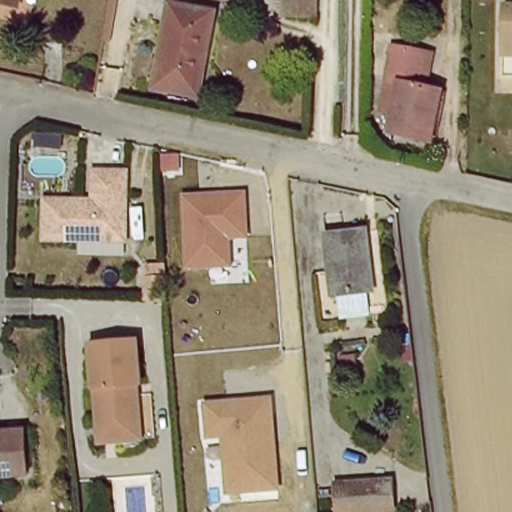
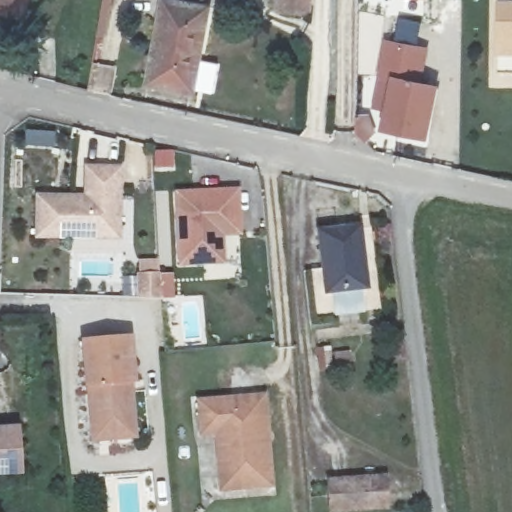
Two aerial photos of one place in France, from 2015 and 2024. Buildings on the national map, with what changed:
unchanged [(0,7),(0,0),(15,0),(12,11),(0,7)]
unchanged [(148,83),(169,0),(173,0),(214,10),(193,94),(148,83)]
unchanged [(280,0),(311,0),(310,13),(279,12),(280,0)]
unchanged [(503,0),(512,0),(512,51),(502,51),(503,0)]
unchanged [(391,80),(370,74),(382,36),(430,51),(422,80),(445,87),(431,146),(377,130),(391,80)]
unchanged [(110,239),(102,239),(40,238),(42,199),(90,200),(90,170),(105,171),(122,171),(120,229),(120,239),(110,239)]
unchanged [(224,238),(225,266),(182,268),(179,197),(240,194),(241,229),(241,237),(224,238)]
unchanged [(359,290),(321,294),(316,234),(355,231),(359,290)]
unchanged [(97,444),(95,431),(87,346),(119,342),(132,341),(137,384),(133,384),(137,427),(138,440),(127,441),(97,444)]
unchanged [(268,432),(269,447),(273,489),(223,494),(218,436),(203,438),(201,405),(265,400),(268,432)]
unchanged [(20,426),(22,473),(0,474),(0,427),(20,426)]
unchanged [(384,479),(385,506),(332,509),(330,483),(384,479)]

